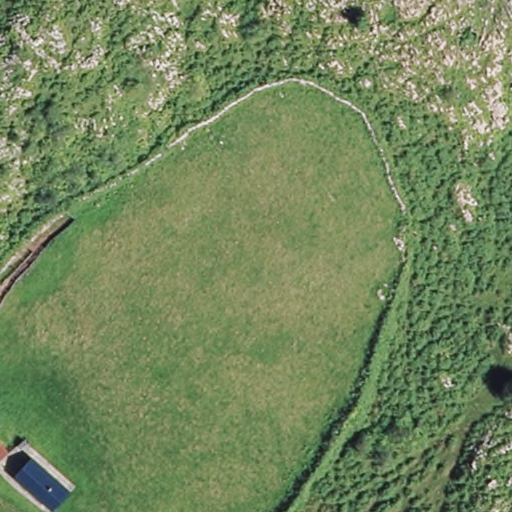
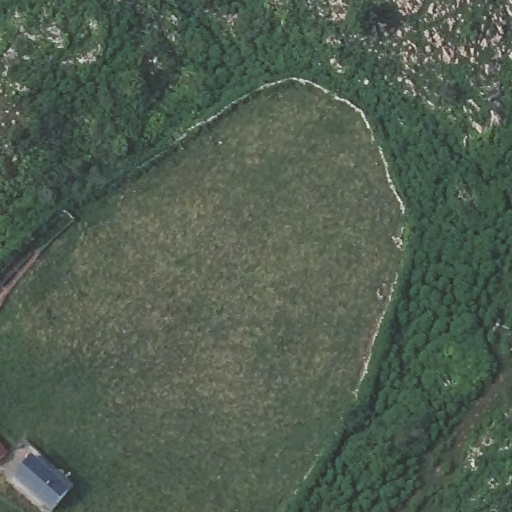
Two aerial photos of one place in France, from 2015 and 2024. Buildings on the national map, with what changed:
unchanged [(4,459),(0,463),(0,455),(4,459)]
unchanged [(29,461),(66,487),(52,508),(15,480),(29,461)]

